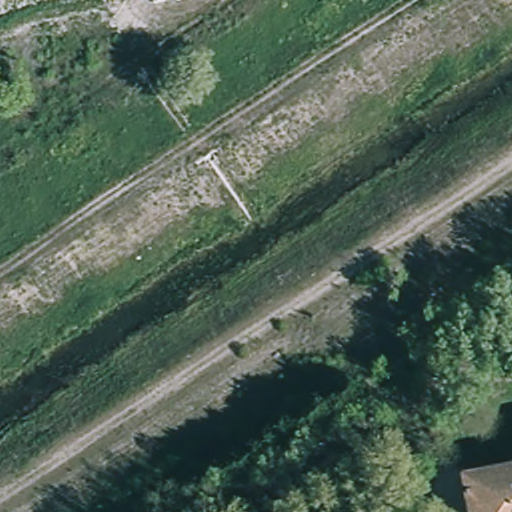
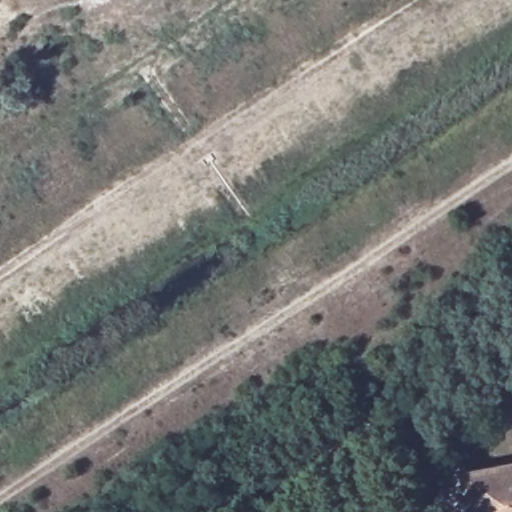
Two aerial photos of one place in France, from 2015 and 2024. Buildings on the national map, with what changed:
unchanged [(461,468),(512,459),(512,512),(469,512),(461,468)]

